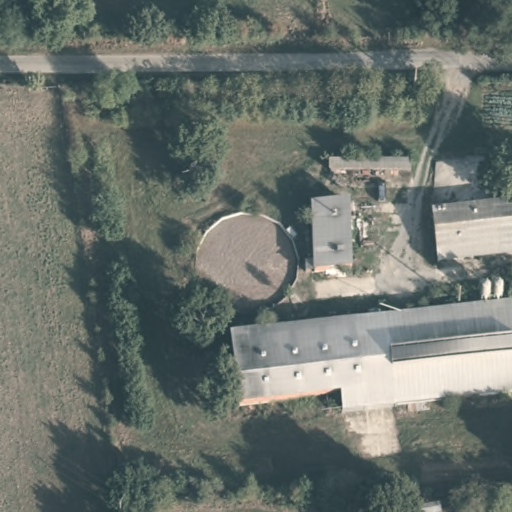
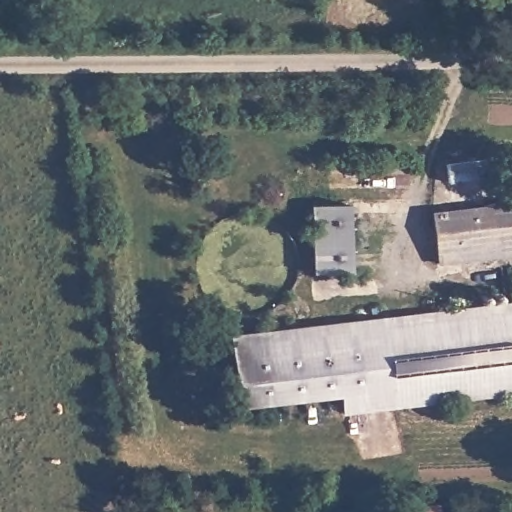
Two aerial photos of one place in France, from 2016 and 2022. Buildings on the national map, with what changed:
unchanged [(511,249),(504,210),(501,198),(507,197),(512,197),(512,249),(511,249)]
unchanged [(438,260),(431,207),(501,198),(504,210),(511,249),(438,260)]
unchanged [(347,201),(352,268),(317,270),(313,205),(347,201)]
unchanged [(510,292),(512,303),(512,382),(366,406),(363,391),(240,410),(230,339),(510,292)]

